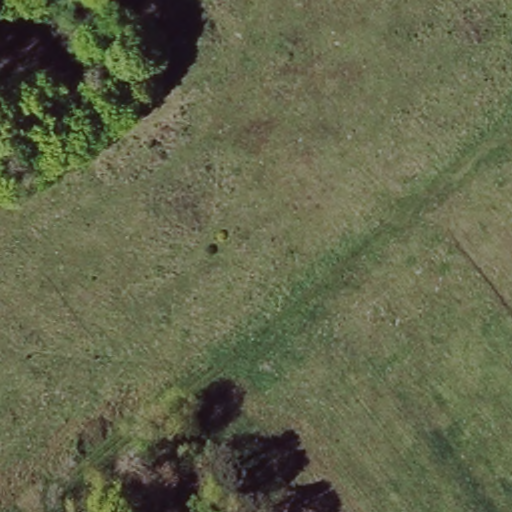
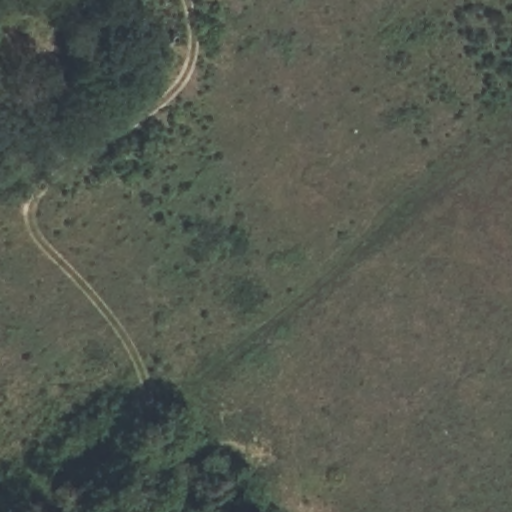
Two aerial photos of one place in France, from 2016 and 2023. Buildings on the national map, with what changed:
[]

